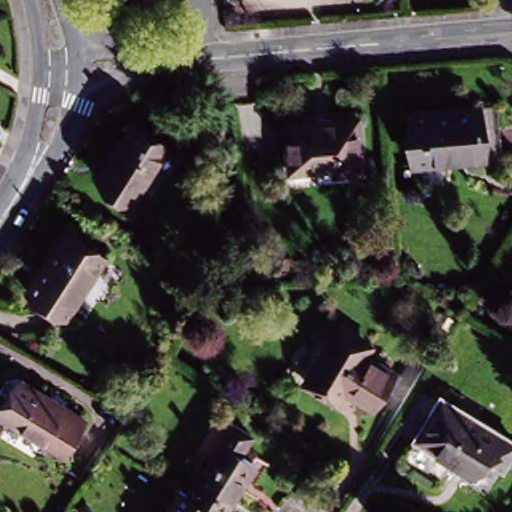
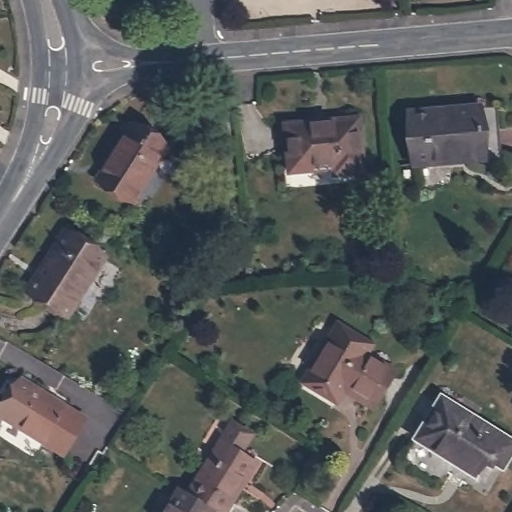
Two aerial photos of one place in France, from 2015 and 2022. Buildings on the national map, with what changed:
unchanged [(491,114),(495,160),(429,165),(429,169),(405,171),(401,120),(491,114)]
unchanged [(361,173),(333,176),(332,169),(288,171),(283,124),(357,119),(361,173)]
unchanged [(165,154),(132,207),(97,186),(131,132),(165,154)]
unchanged [(102,257),(65,318),(27,293),(65,233),(102,257)]
unchanged [(347,378),(340,390),(308,370),(336,324),(399,362),(378,397),(347,378)]
unchanged [(20,376),(81,415),(60,451),(0,414),(0,407),(20,376)]
unchanged [(512,446),(512,460),(504,474),(488,465),(476,483),(415,446),(441,402),(512,446)]
unchanged [(212,510),(186,494),(227,426),(249,439),(240,456),(257,466),(230,512),(216,512),(212,510)]
unchanged [(211,512),(162,512),(176,488),(186,494),(212,510),(211,512)]

